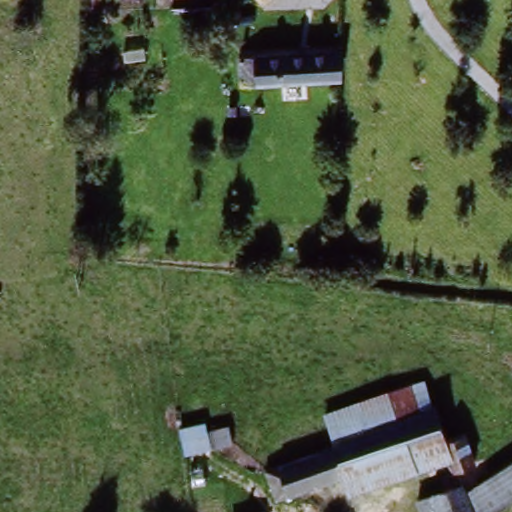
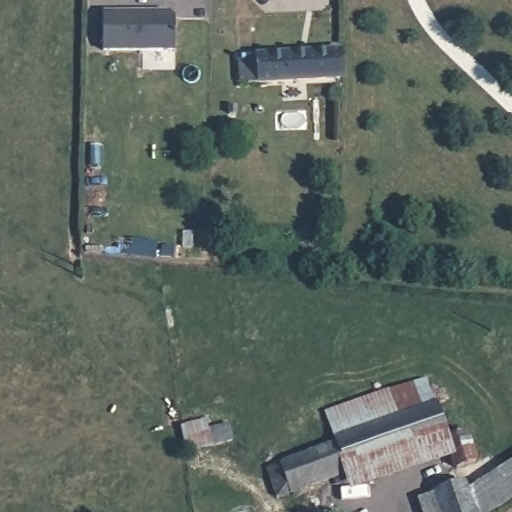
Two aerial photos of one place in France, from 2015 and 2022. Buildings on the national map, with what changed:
new [(102,7),(175,8),(174,55),(102,55),(102,7)]
unchanged [(345,49),(344,79),(241,76),(241,49),(345,49)]
unchanged [(328,425),(323,410),(426,376),(435,403),(456,395),(481,457),(457,469),(452,456),(351,494),(346,475),(277,496),(264,467),(278,460),(274,445),(328,425)]
unchanged [(236,415),(241,437),(186,451),(181,426),(236,415)]
unchanged [(512,461),(512,499),(491,512),(474,512),(466,488),(512,461)]
unchanged [(415,500),(434,494),(464,483),(466,488),(474,512),(419,512),(415,500)]
unchanged [(264,510),(264,512),(245,512),(264,510)]

